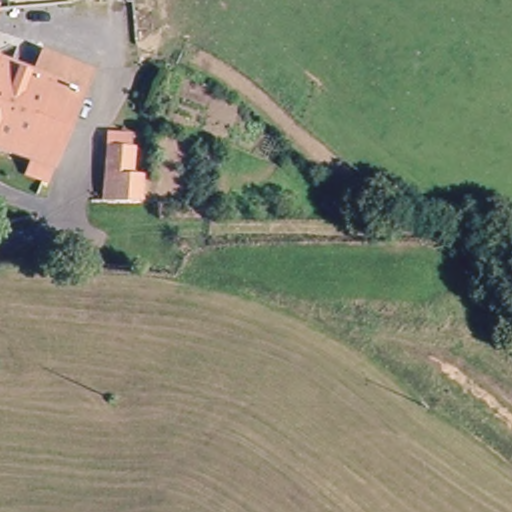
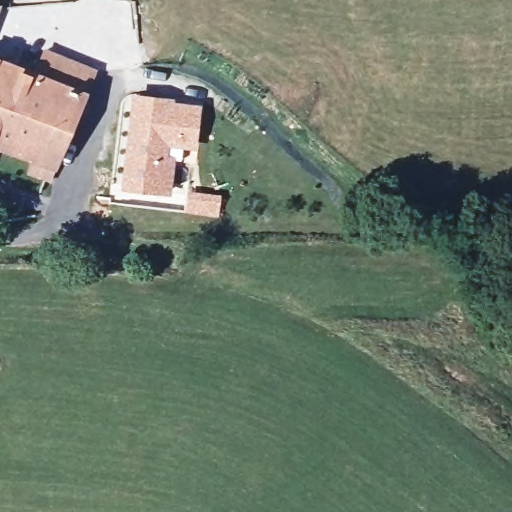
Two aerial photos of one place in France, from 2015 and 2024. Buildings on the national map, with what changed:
unchanged [(34,82),(42,60),(89,78),(48,171),(0,153),(0,69),(34,82)]
new [(173,96),(172,103),(201,105),(197,152),(177,150),(172,195),(122,191),(132,93),(173,96)]
demolished [(104,200),(108,127),(135,128),(134,144),(140,144),(138,170),(154,171),(153,205),(104,200)]

